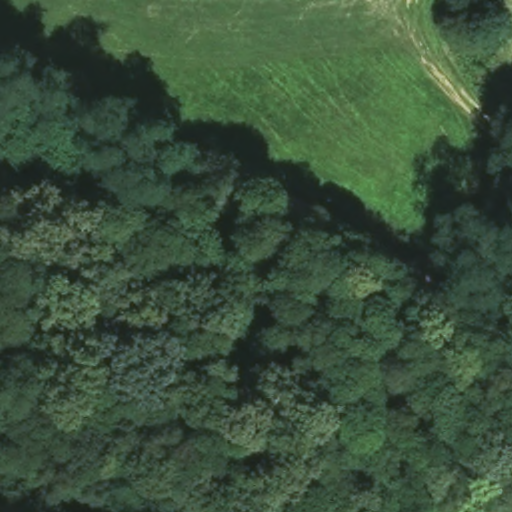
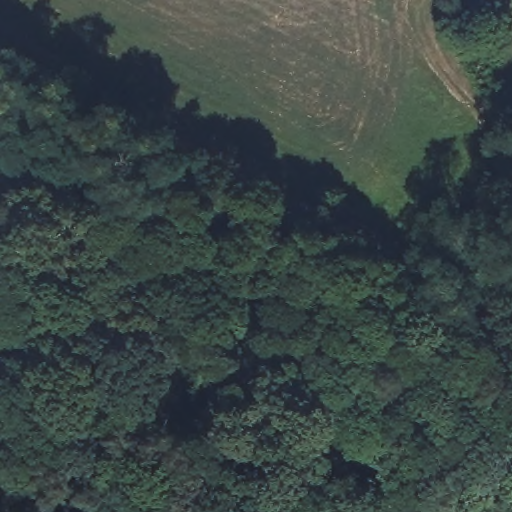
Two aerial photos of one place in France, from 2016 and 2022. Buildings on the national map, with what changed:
unchanged [(509,492),(512,504),(512,512),(453,512),(450,505),(509,492)]

